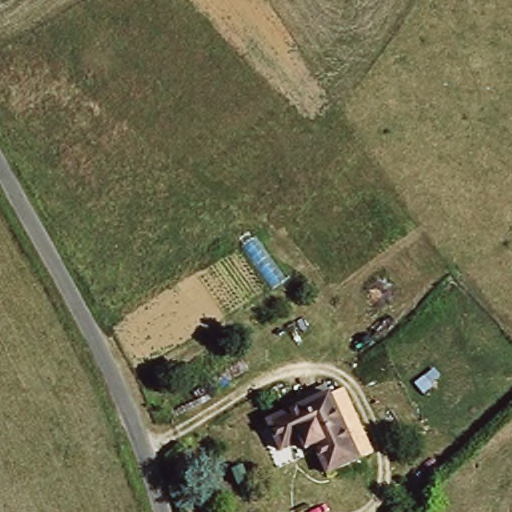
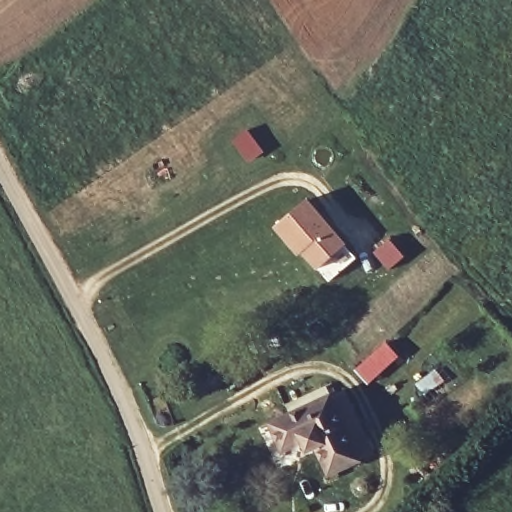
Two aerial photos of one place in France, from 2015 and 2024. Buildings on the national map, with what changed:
new [(319,272),(302,253),(299,256),(274,228),(307,199),(347,244),(319,272)]
unchanged [(325,474),(313,449),(303,454),(298,444),(279,453),(266,426),(330,394),(360,456),(325,474)]

